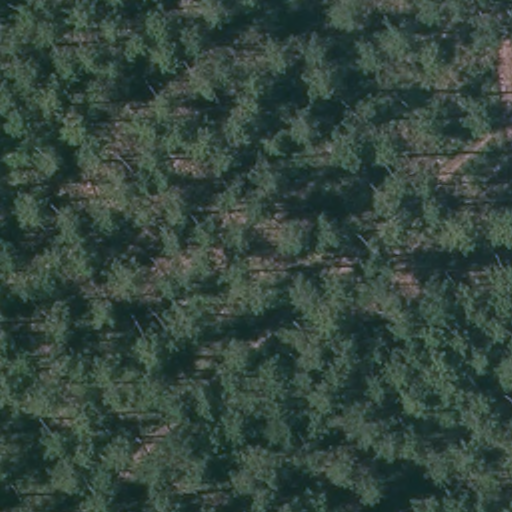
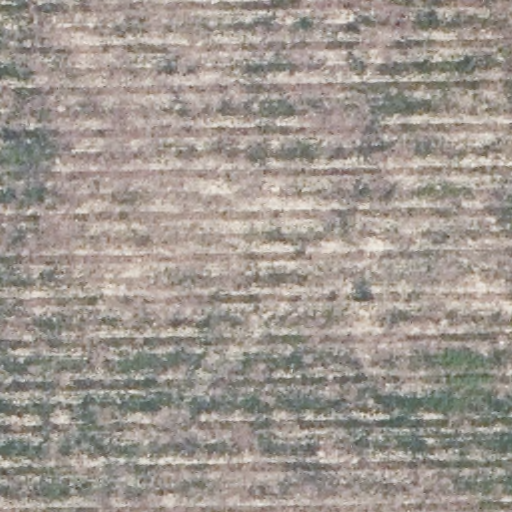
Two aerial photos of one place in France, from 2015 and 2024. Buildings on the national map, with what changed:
[]

